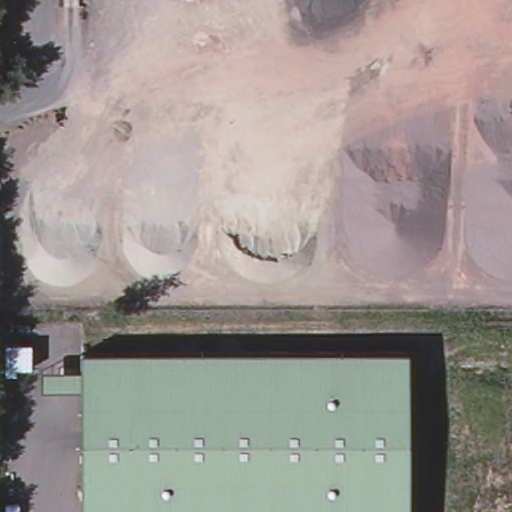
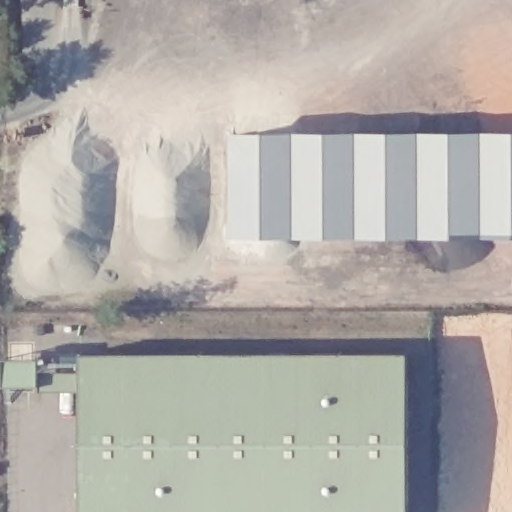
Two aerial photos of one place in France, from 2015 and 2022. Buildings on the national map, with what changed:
new [(229,131),(512,131),(512,235),(231,236),(229,131)]
unchanged [(91,350),(353,351),(411,351),(411,512),(83,512),(83,350),(91,350)]

